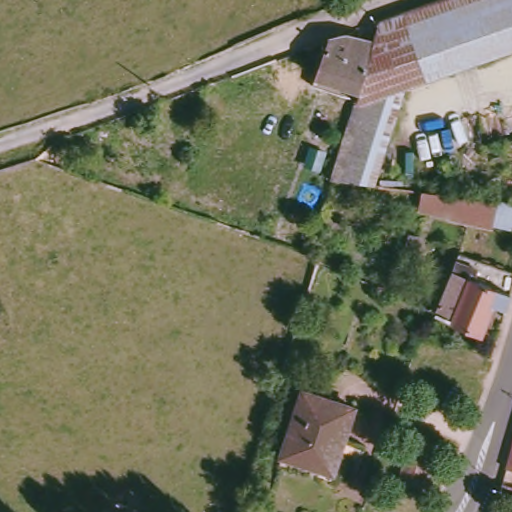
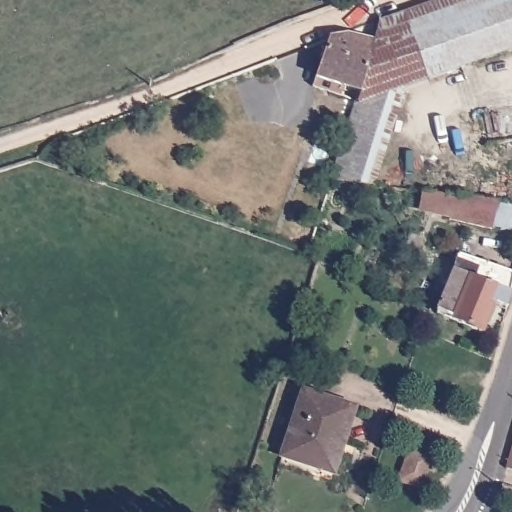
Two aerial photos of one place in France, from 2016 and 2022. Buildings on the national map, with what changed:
unchanged [(332,176),(355,102),(360,86),(375,38),(382,15),(383,14),(423,0),(454,0),(475,59),(388,90),(360,179),(332,176)]
unchanged [(475,59),(454,0),(512,0),(512,46),(475,59)]
unchanged [(360,86),(317,72),(330,36),(347,30),(375,38),(360,86)]
unchanged [(512,142),(512,157),(485,162),(483,148),(512,142)]
unchanged [(499,202),(492,228),(454,219),(454,217),(423,210),(427,192),(445,195),(499,202)]
unchanged [(417,249),(413,248),(406,246),(410,235),(417,237),(421,239),(417,249)]
unchanged [(501,313),(490,309),(478,338),(432,319),(456,260),(511,280),(509,292),(501,313)]
unchanged [(356,404),(335,468),(282,452),(295,414),(284,411),(287,401),(299,403),(305,387),(356,404)]
unchanged [(433,457),(421,488),(416,487),(413,488),(410,488),(407,487),(406,485),(406,483),(400,481),(411,450),(412,450),(414,445),(432,451),(430,456),(433,457)]
unchanged [(507,471),(509,464),(512,453),(512,472),(507,471)]

